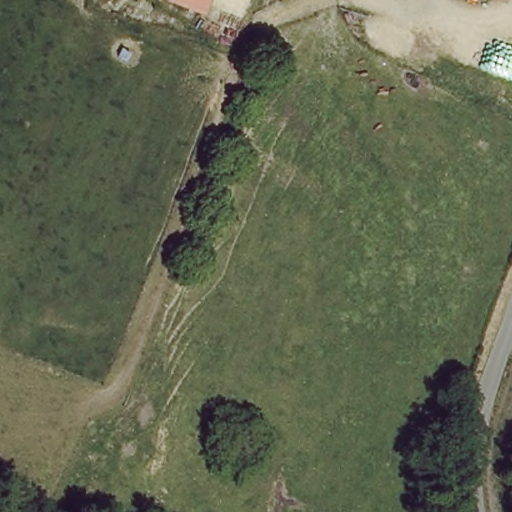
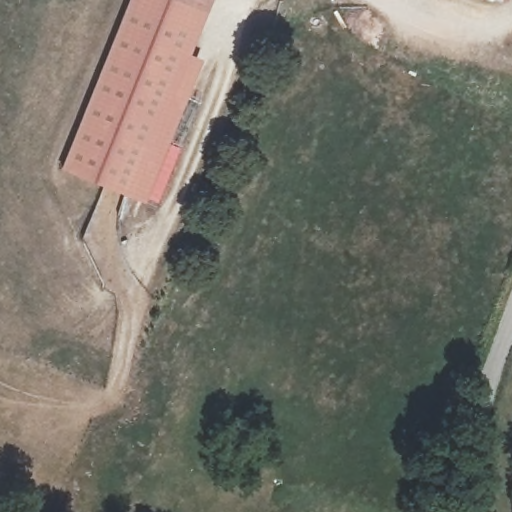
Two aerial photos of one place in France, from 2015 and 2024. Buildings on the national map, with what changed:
new [(190,54),(202,58),(144,202),(62,169),(130,0),(172,0),(206,14),(190,54)]
unchanged [(211,0),(206,14),(172,0),(211,0)]

